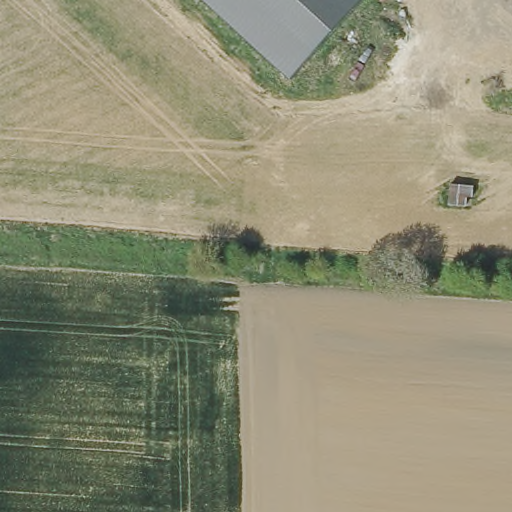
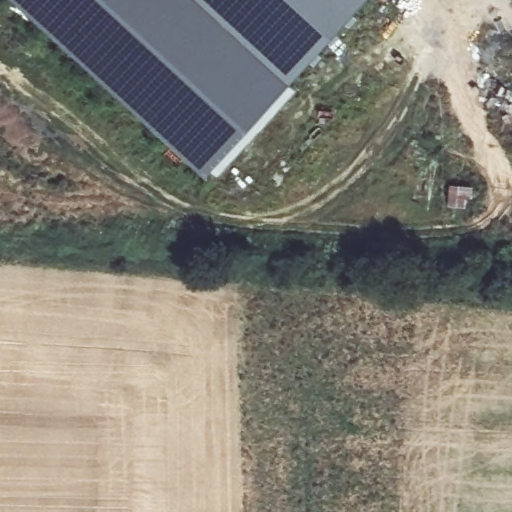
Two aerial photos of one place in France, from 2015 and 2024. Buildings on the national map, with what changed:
new [(206,174),(16,0),(200,0),(290,83),(206,174)]
unchanged [(205,0),(366,0),(292,81),(205,0)]

